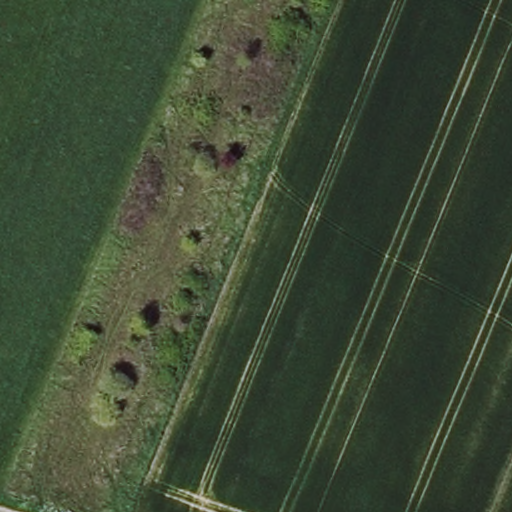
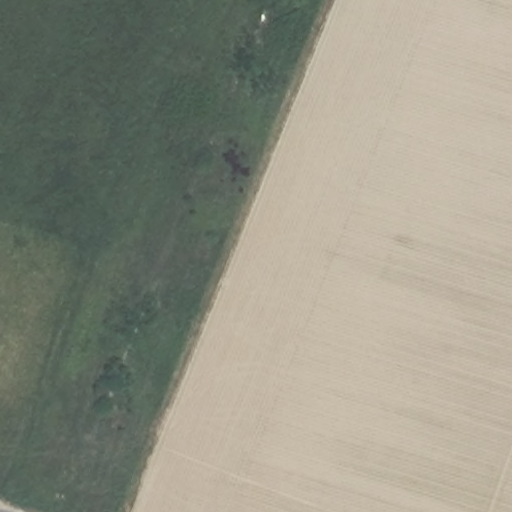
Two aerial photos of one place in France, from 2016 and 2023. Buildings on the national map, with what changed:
[]

